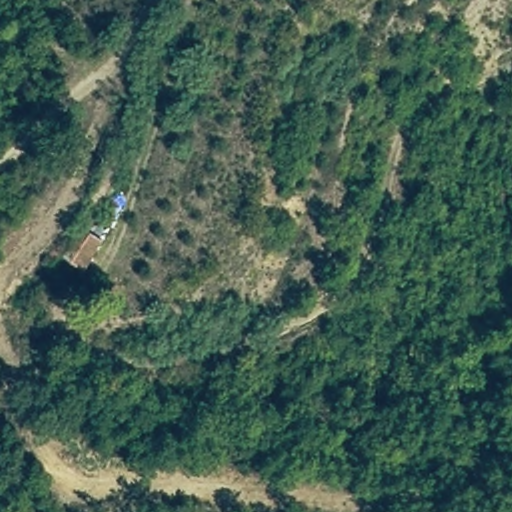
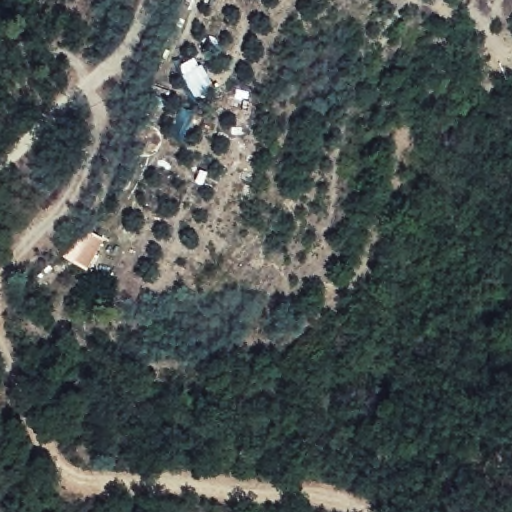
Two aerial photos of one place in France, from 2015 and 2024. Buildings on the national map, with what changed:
unchanged [(86,273),(65,261),(83,229),(104,240),(86,273)]

